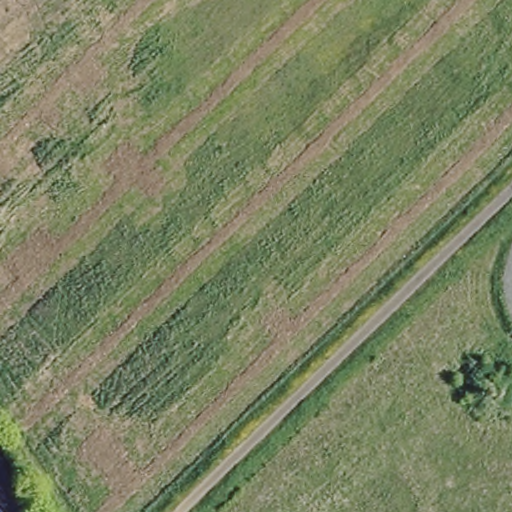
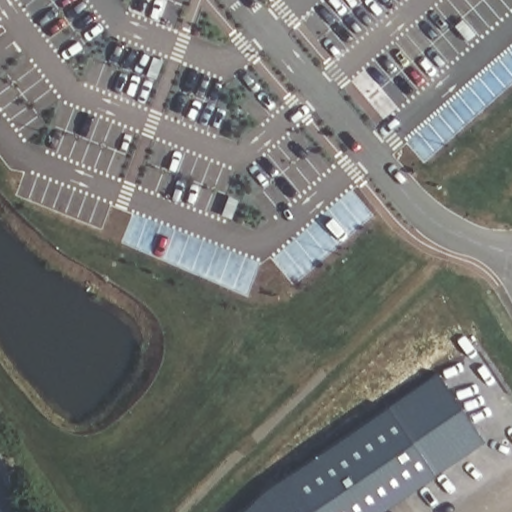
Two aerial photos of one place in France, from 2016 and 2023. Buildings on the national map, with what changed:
new [(434,375),(479,441),(374,512),(308,512),(284,476),(434,375)]
new [(284,476),(308,512),(241,512),(284,476)]

